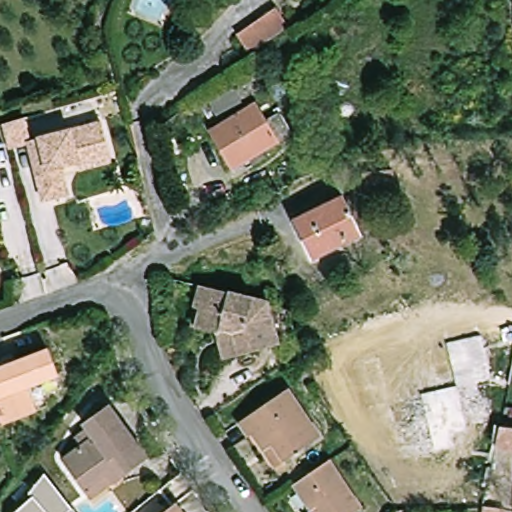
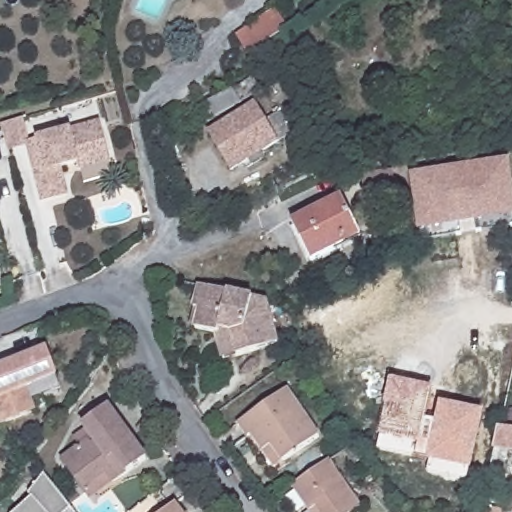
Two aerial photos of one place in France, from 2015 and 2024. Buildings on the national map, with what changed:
unchanged [(279,9),(291,28),(249,55),(237,36),(279,9)]
unchanged [(208,107),(256,82),(264,95),(215,121),(208,107)]
unchanged [(233,176),(210,139),(254,110),(265,128),(278,120),(290,140),(233,176)]
unchanged [(68,195),(43,202),(32,160),(28,145),(9,150),(3,126),(24,120),(30,142),(101,124),(105,139),(109,150),(112,162),(81,171),(79,164),(61,169),(68,195)]
new [(512,173),(512,218),(417,231),(410,174),(510,160),(512,173)]
unchanged [(364,195),(360,175),(389,170),(393,190),(364,196),(364,195)]
unchanged [(292,222),(341,197),(361,235),(312,260),(292,222)]
unchanged [(218,329),(197,323),(202,305),(197,303),(203,282),(275,302),(284,328),(286,334),(264,342),(239,350),(225,353),(218,329)]
unchanged [(61,375),(29,387),(38,410),(2,424),(0,419),(0,369),(51,349),(61,375)]
new [(484,413),(471,470),(427,462),(427,460),(378,449),(382,438),(378,438),(391,379),(432,389),(425,420),(436,423),(440,403),(484,413)]
unchanged [(265,447),(255,432),(251,435),(240,420),(289,386),(322,433),(286,458),(277,465),(265,447)]
unchanged [(90,492),(67,461),(84,448),(79,441),(92,432),(87,426),(111,408),(150,460),(117,486),(97,501),(90,492)]
unchanged [(496,425),(512,428),(512,449),(491,446),(496,425)]
unchanged [(297,485),(298,485),(332,461),(364,506),(356,512),(312,512),(315,510),(297,485)]
unchanged [(15,512),(32,498),(26,493),(44,475),(73,508),(75,512),(15,512)]
unchanged [(483,512),(483,506),(483,505),(508,508),(507,512),(483,512)]
unchanged [(180,512),(168,512),(176,506),(180,512)]

